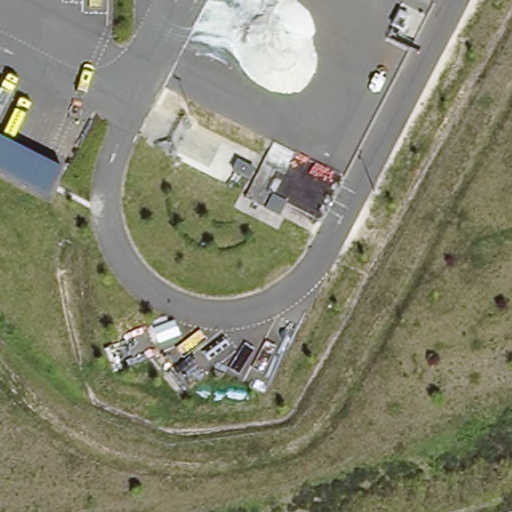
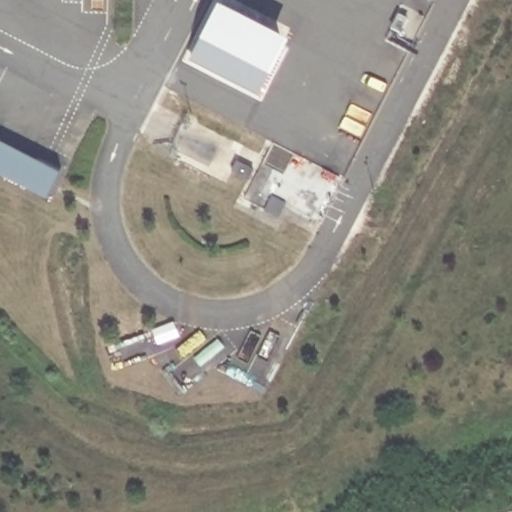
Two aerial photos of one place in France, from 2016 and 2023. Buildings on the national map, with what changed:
new [(223,0),(289,33),(265,81),(199,48),(223,0)]
unchanged [(0,171),(0,139),(63,171),(50,197),(0,171)]

